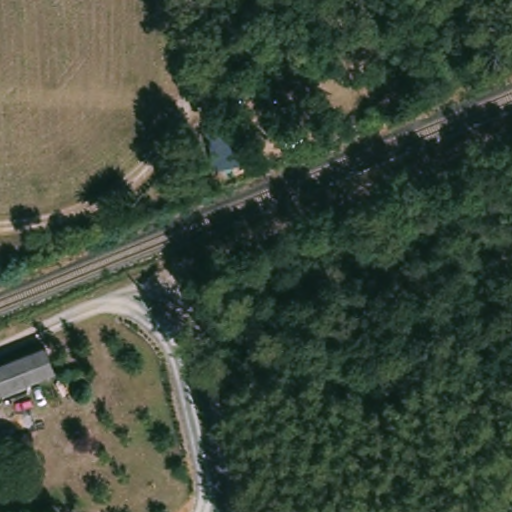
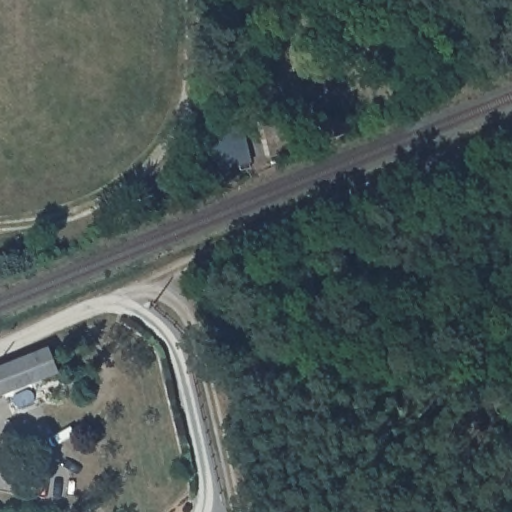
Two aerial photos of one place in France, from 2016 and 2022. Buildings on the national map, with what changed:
unchanged [(251,172),(219,186),(203,148),(236,135),(251,172)]
unchanged [(0,396),(0,369),(47,351),(56,373),(0,396)]

